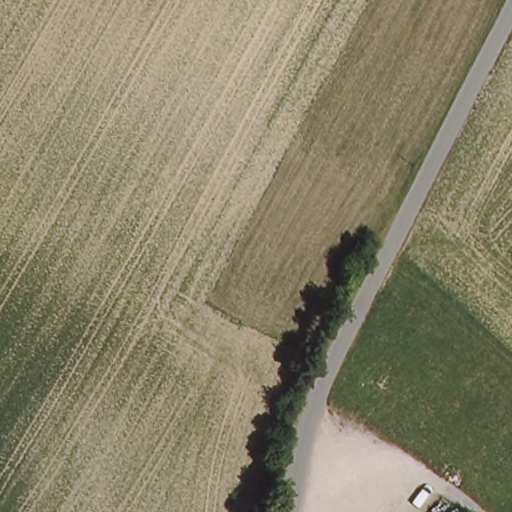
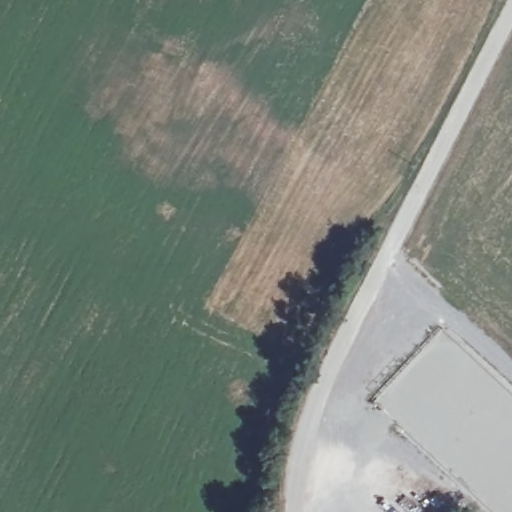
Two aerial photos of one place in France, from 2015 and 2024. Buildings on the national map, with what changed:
unchanged [(455,512),(449,512),(452,509),(455,512)]

